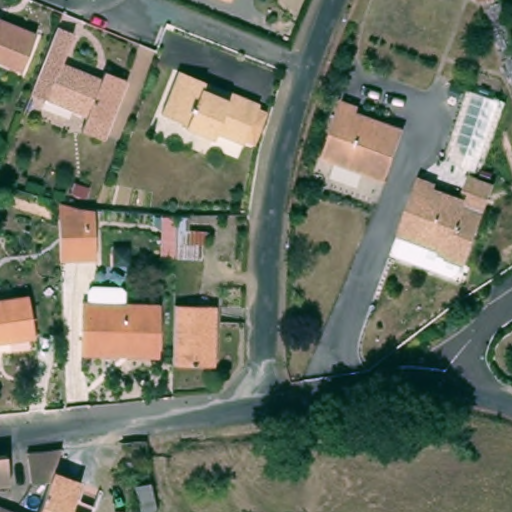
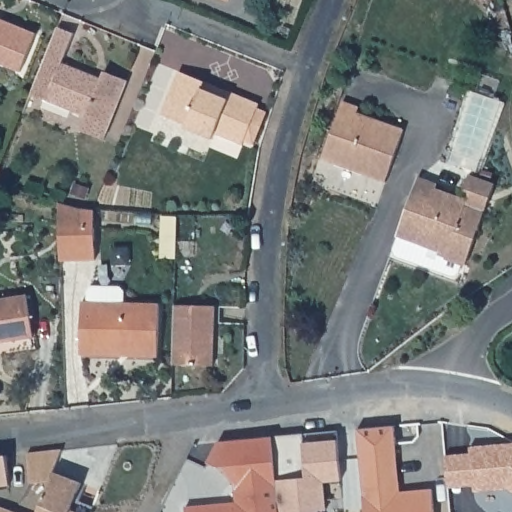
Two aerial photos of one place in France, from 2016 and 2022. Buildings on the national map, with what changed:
unchanged [(225,2),(219,0),(226,0),(225,2)]
unchanged [(474,0),(492,0),(475,2),(474,0)]
unchanged [(33,35),(17,73),(0,67),(0,22),(33,35)]
unchanged [(58,65),(86,76),(98,81),(101,73),(124,82),(100,141),(77,132),(83,118),(27,96),(54,28),(70,35),(58,65)]
unchanged [(250,146),(241,142),(239,146),(211,135),(209,140),(181,129),(182,126),(157,116),(175,73),(201,84),(226,94),(255,105),(254,109),(263,113),(250,146)]
unchanged [(502,104),(475,174),(442,162),(464,90),(502,104)]
unchanged [(359,175),(318,161),(339,103),(355,108),(353,114),(400,131),(383,178),(382,183),(359,175)]
unchanged [(414,180),(432,186),(430,191),(462,202),(465,194),(460,192),(465,176),(491,185),(462,266),(442,259),(443,254),(394,236),(414,180)]
unchanged [(71,185),(85,190),(82,200),(67,195),(71,185)]
unchanged [(95,209),(96,257),(61,258),(62,201),(95,209)]
unchanged [(188,219),(187,233),(209,234),(209,247),(199,247),(199,260),(171,260),(157,259),(158,218),(173,219),(188,219)]
unchanged [(30,339),(0,344),(0,301),(24,297),(30,339)]
unchanged [(157,302),(157,354),(81,351),(82,299),(157,302)]
unchanged [(170,307),(211,308),(209,367),(168,366),(170,307)]
new [(326,482),(327,509),(319,509),(316,512),(279,512),(273,435),(303,433),(304,441),(338,438),(342,481),(326,482)]
new [(235,484),(224,470),(209,462),(218,441),(273,435),(279,512),(186,512),(186,507),(237,502),(235,484)]
new [(475,491),(474,485),(448,487),(445,455),(471,453),(471,447),(512,443),(512,491),(508,488),(475,491)]
unchanged [(28,468),(15,469),(16,467),(5,467),(10,457),(31,454),(28,468)]
unchanged [(2,457),(5,487),(0,488),(0,458),(2,457)]
unchanged [(77,485),(71,501),(90,508),(88,512),(34,512),(49,474),(77,485)]
unchanged [(144,512),(139,491),(154,488),(159,512),(144,512)]
unchanged [(28,512),(0,512),(0,501),(28,512)]

